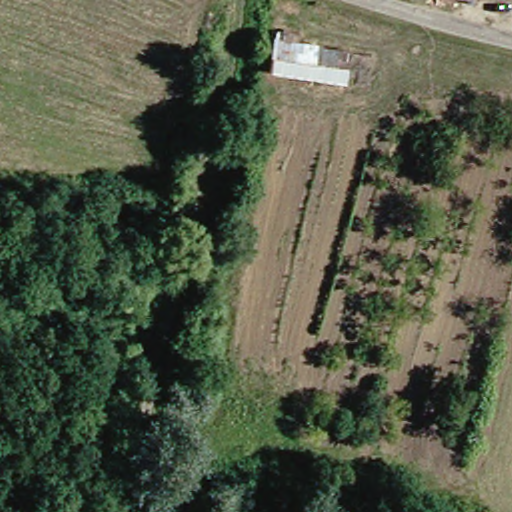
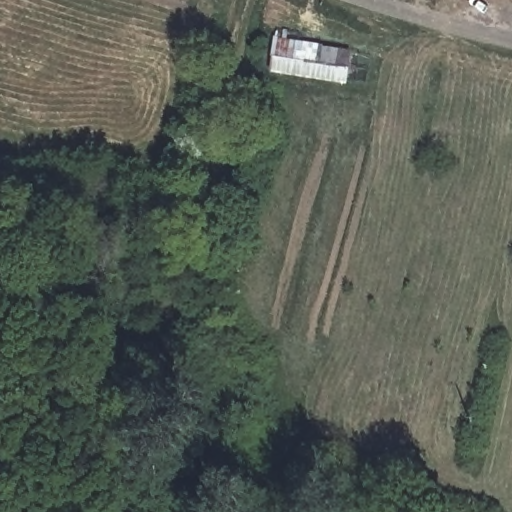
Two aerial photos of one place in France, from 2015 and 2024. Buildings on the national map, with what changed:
unchanged [(268,29),(288,29),(287,46),(337,47),(337,67),(364,69),(362,87),(291,87),(291,77),(266,75),(268,29)]

